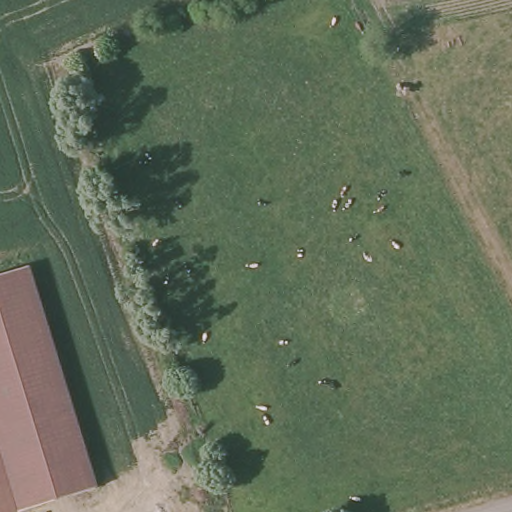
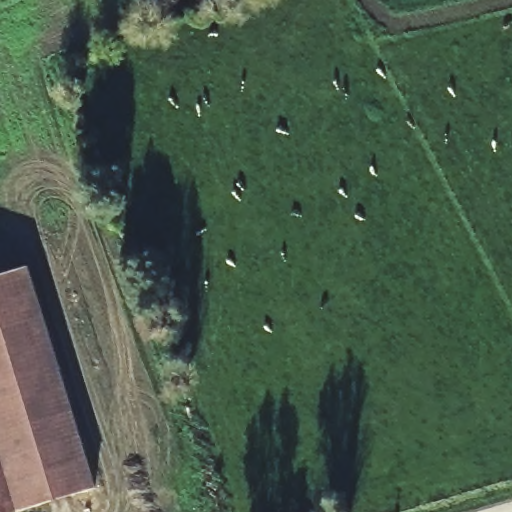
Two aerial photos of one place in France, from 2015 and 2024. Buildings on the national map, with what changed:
unchanged [(16,512),(0,512),(0,275),(22,268),(90,488),(16,512)]

